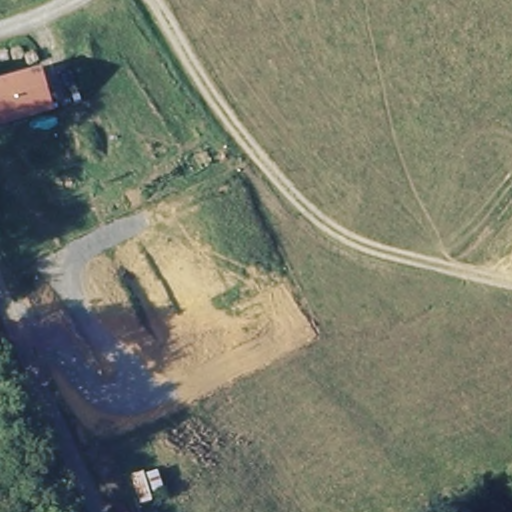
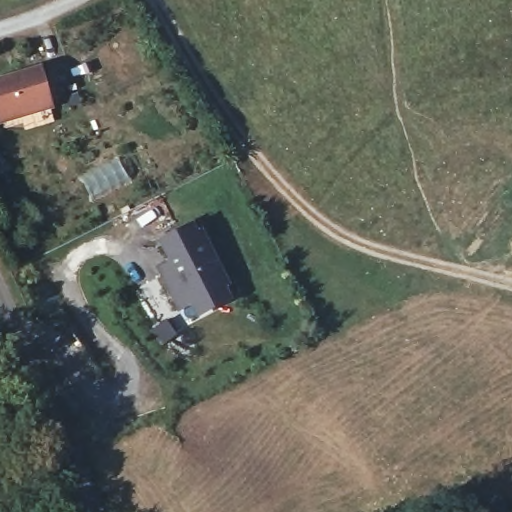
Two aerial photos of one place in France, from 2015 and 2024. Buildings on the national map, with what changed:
unchanged [(0,121),(0,75),(41,64),(53,106),(0,121)]
new [(197,319),(191,306),(179,311),(157,267),(167,261),(158,243),(199,222),(231,285),(226,287),(233,301),(197,319)]

